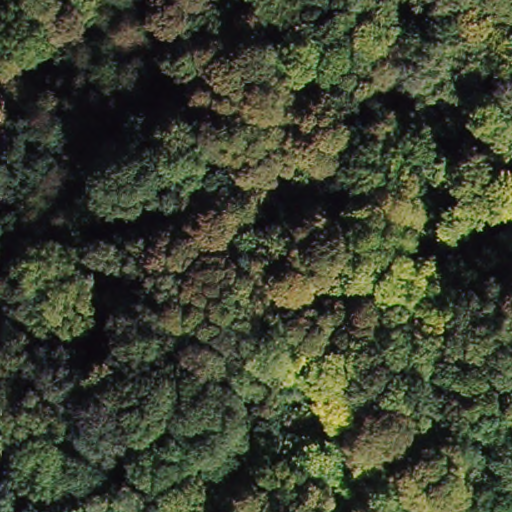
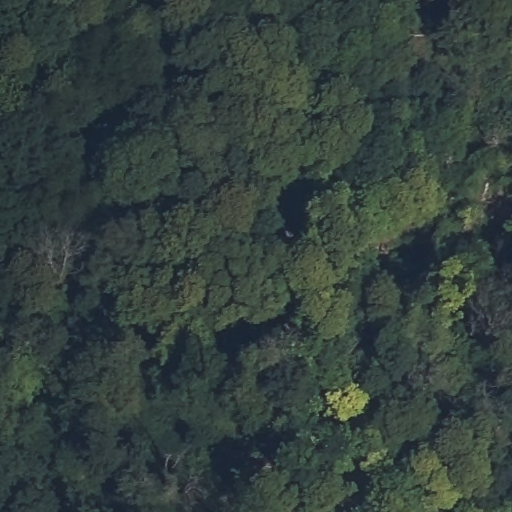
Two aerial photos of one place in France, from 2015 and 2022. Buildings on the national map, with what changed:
unchanged [(165,421),(174,417),(180,418),(187,421),(192,425),(195,435),(195,440),(192,448),(187,452),(177,456),(172,456),(165,452),(160,448),(157,439),(159,429),(165,421)]

